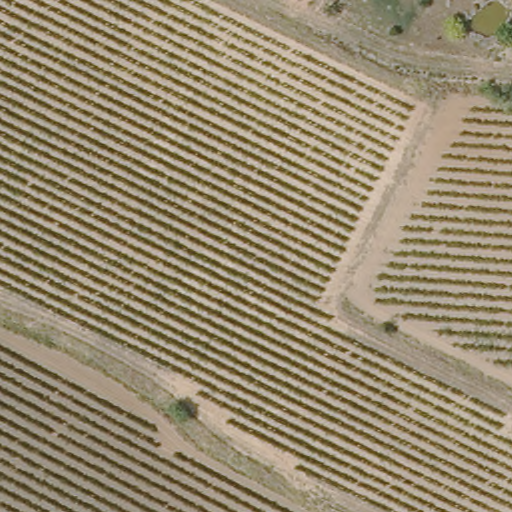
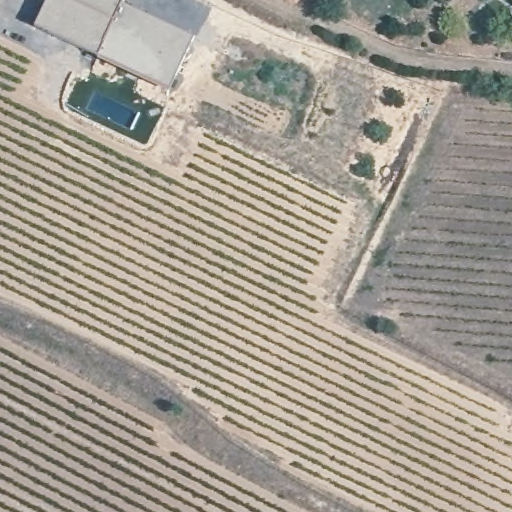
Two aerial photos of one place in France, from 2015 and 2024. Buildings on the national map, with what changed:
new [(98,56),(35,26),(48,0),(123,0),(120,6),(194,36),(169,89),(98,56)]

